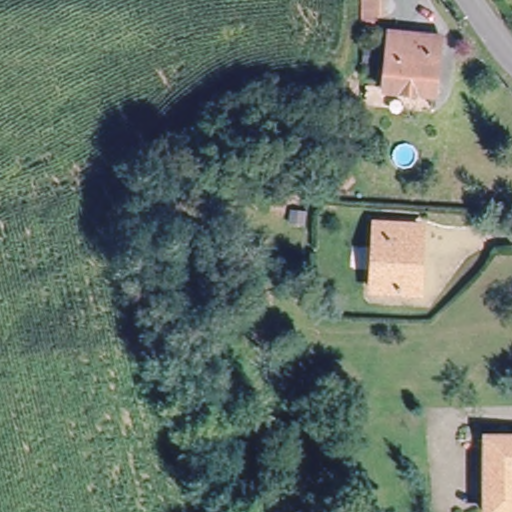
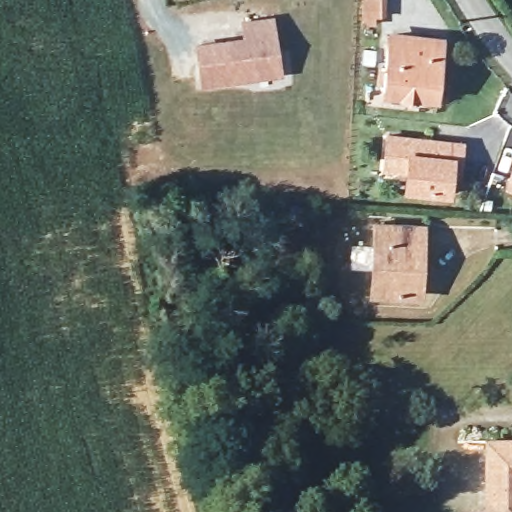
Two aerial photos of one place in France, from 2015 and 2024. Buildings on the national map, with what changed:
unchanged [(380,15),(375,20),(364,20),(364,0),(386,0),(386,15),(380,15)]
new [(242,39),(239,24),(268,19),(277,71),(201,85),(195,48),(242,39)]
unchanged [(441,39),(435,96),(384,90),(392,34),(441,39)]
new [(403,194),(405,175),(381,171),(385,133),(465,141),(463,167),(454,165),(451,195),(403,194)]
new [(512,167),(512,187),(506,185),(512,167)]
unchanged [(372,292),(376,226),(421,228),(420,251),(419,266),(418,295),(372,292)]
unchanged [(484,440),(512,439),(512,512),(484,512),(484,440)]

